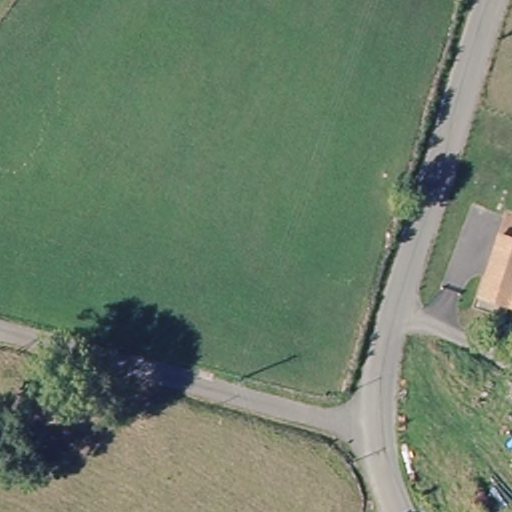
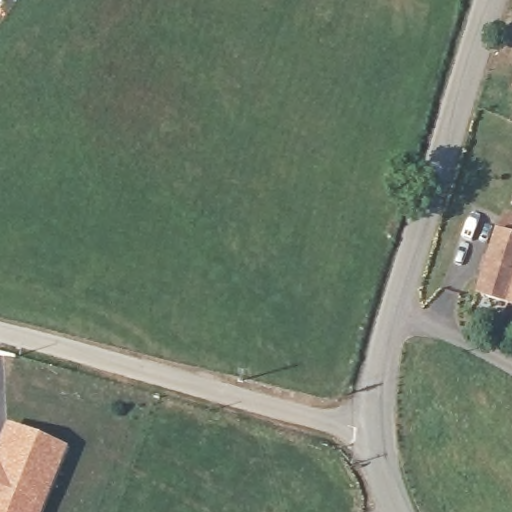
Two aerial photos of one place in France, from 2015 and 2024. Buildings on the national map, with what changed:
unchanged [(495,302),(485,300),(486,295),(503,219),(512,220),(512,306),(495,302)]
new [(67,447),(42,512),(0,512),(0,438),(7,421),(67,447)]

